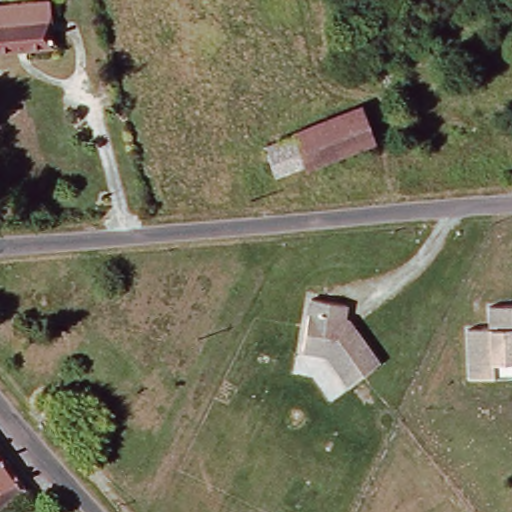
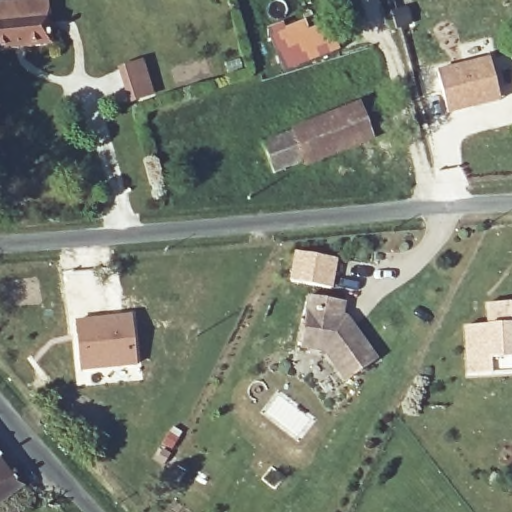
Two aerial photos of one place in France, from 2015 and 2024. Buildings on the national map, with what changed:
unchanged [(53,47),(0,53),(0,6),(49,2),(53,47)]
new [(283,21),(285,26),(304,19),(308,30),(327,22),(340,50),(285,72),(266,27),(283,21)]
new [(475,107),(448,112),(439,71),(491,59),(500,95),(501,100),(475,107)]
new [(139,64),(149,97),(130,104),(120,70),(139,64)]
unchanged [(354,105),(367,142),(344,151),(298,168),(288,140),(285,131),(335,112),(354,105)]
unchanged [(246,187),(235,160),(288,140),(298,168),(246,187)]
new [(296,253),(336,258),(332,288),(292,282),(296,253)]
unchanged [(348,326),(353,327),(377,361),(348,382),(326,353),(302,351),(308,298),(343,303),(341,318),(348,326)]
unchanged [(490,376),(466,378),(462,328),(485,327),(484,306),(512,303),(512,364),(511,365),(511,375),(490,376)]
new [(135,316),(136,365),(80,371),(79,322),(135,316)]
unchanged [(0,507),(0,469),(18,493),(0,507)]

